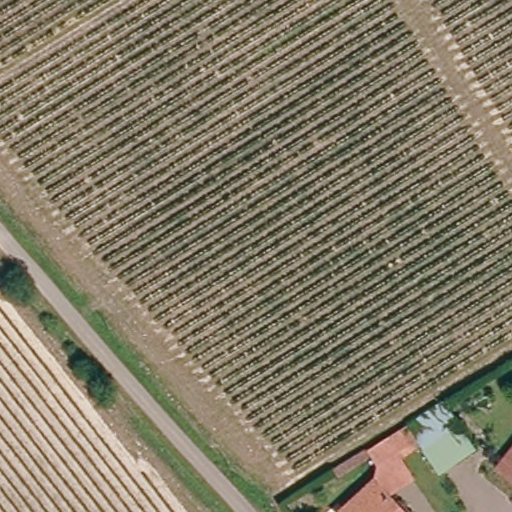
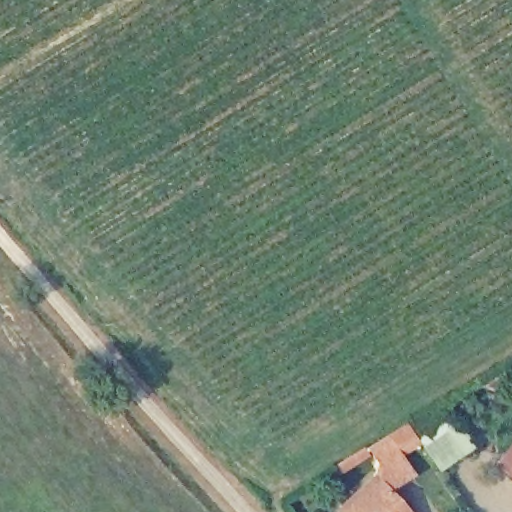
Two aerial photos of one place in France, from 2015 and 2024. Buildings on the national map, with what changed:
unchanged [(443,404),(455,422),(420,443),(399,455),(411,477),(386,491),(373,476),(375,459),(341,477),(334,464),(443,404)]
unchanged [(455,422),(467,445),(435,466),(422,447),(420,443),(455,422)]
unchanged [(507,476),(495,466),(512,445),(512,481),(507,476)]
unchanged [(345,502),(373,476),(386,491),(390,495),(407,512),(339,512),(337,509),(345,502)]

